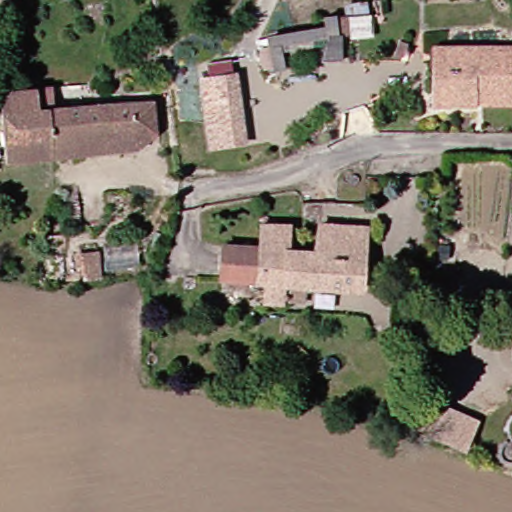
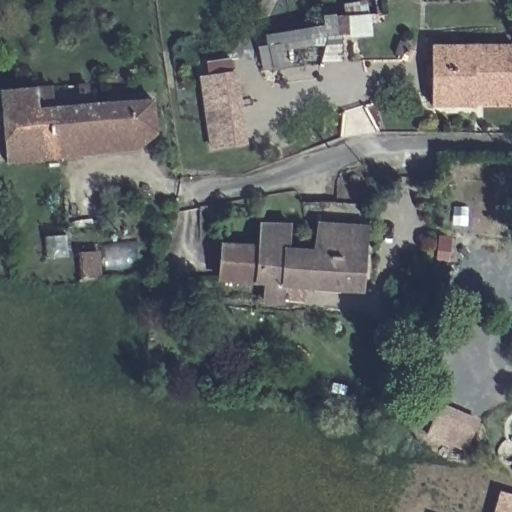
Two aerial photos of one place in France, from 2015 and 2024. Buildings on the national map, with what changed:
unchanged [(361,34),(331,39),(328,26),(320,28),(322,41),(290,48),(288,40),(275,42),(283,82),(322,75),(327,104),(344,100),(351,137),(263,160),(246,90),(271,85),(261,33),(317,24),(317,14),(336,12),(334,2),(356,0),(361,34)]
unchanged [(466,104),(423,104),(422,67),(422,44),(443,44),(504,45),(503,89),(505,105),(466,104)]
unchanged [(234,72),(245,140),(241,141),(212,146),(201,78),(224,74),(234,72)]
unchanged [(67,135),(67,154),(0,161),(0,90),(27,88),(29,110),(125,102),(126,131),(67,135)]
unchanged [(144,100),(147,133),(134,143),(127,148),(67,154),(67,135),(126,131),(125,102),(144,100)]
unchanged [(287,223),(287,245),(312,244),(313,223),(351,223),(351,285),(288,283),(280,299),(260,299),(255,281),(215,278),(215,243),(254,242),(253,221),(287,223)]
unchanged [(482,421),(471,449),(433,433),(446,406),(482,421)]
new [(493,512),(499,490),(512,494),(512,512),(493,512)]

